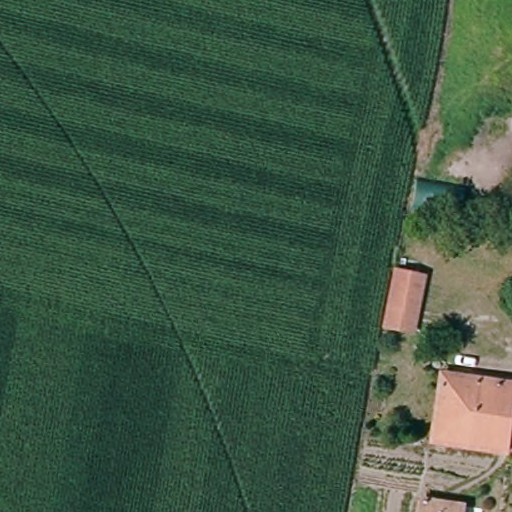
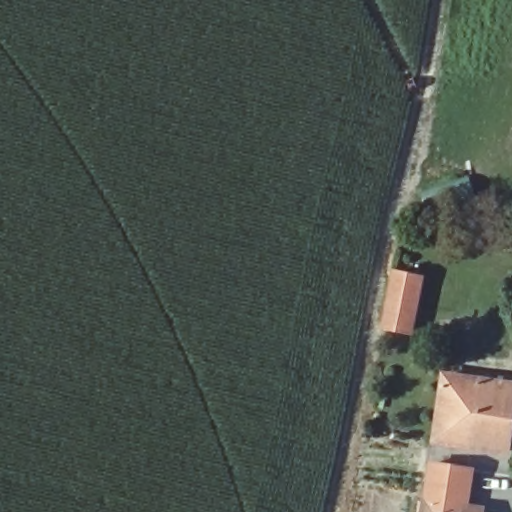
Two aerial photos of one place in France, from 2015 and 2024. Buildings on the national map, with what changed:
unchanged [(399,271),(425,276),(413,339),(385,334),(399,271)]
unchanged [(449,374),(512,388),(512,423),(505,455),(436,439),(449,374)]
new [(425,496),(430,460),(476,466),(471,504),(486,506),(486,512),(420,512),(422,495),(425,496)]
demolished [(466,510),(466,512),(433,512),(435,503),(466,510)]

